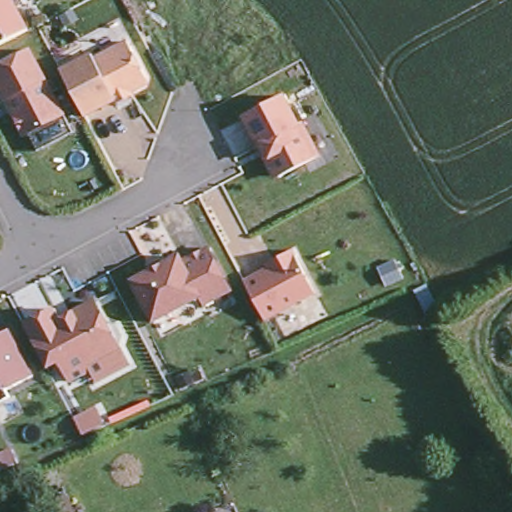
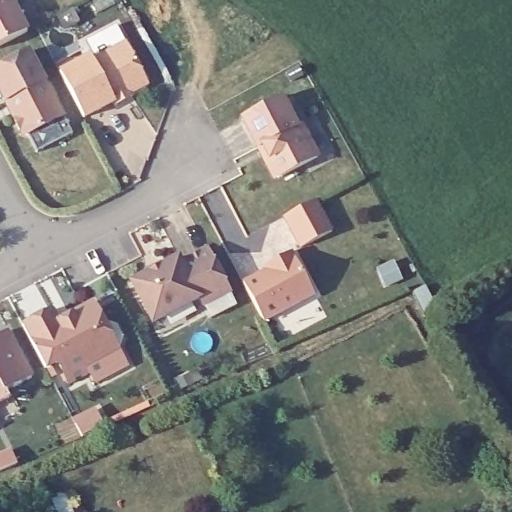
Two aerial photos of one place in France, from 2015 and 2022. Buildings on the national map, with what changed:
unchanged [(14,0),(28,27),(0,42),(0,0),(14,0)]
unchanged [(116,101),(115,97),(85,112),(61,67),(92,51),(95,56),(128,38),(147,75),(145,82),(131,89),(133,92),(116,101)]
unchanged [(0,86),(0,62),(30,46),(64,112),(29,130),(21,128),(13,112),(5,97),(0,86)]
unchanged [(244,114),(284,93),(298,123),(302,121),(319,154),(282,173),(273,173),(268,163),(259,144),(244,114)]
new [(318,200),(333,229),(300,246),(285,216),(318,200)]
unchanged [(182,259),(209,245),(230,288),(203,303),(200,295),(152,320),(131,279),(147,270),(145,266),(161,258),(163,262),(180,254),(182,259)]
unchanged [(315,291),(265,318),(245,280),(268,266),(266,262),(275,258),(292,248),(315,291)]
unchanged [(104,321),(108,320),(110,320),(111,321),(113,321),(116,323),(117,323),(117,324),(118,327),(122,334),(122,337),(120,342),(120,343),(119,344),(82,362),(86,370),(70,379),(58,357),(46,364),(23,322),(54,306),(60,317),(71,311),(93,300),(104,321)]
unchanged [(7,327),(31,374),(5,388),(8,394),(0,399),(0,331),(7,327)]

